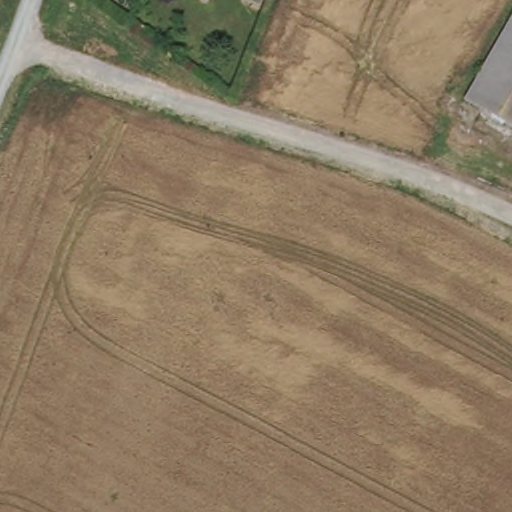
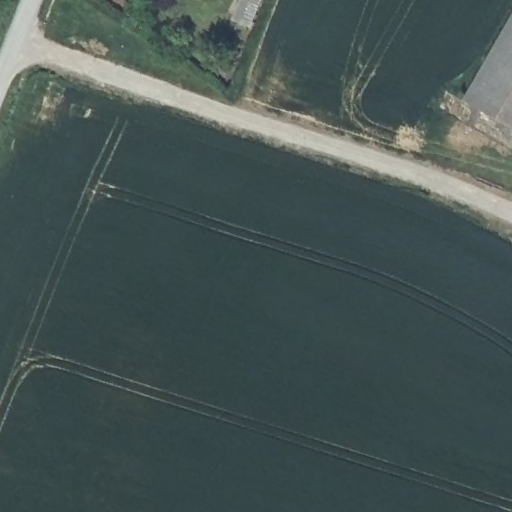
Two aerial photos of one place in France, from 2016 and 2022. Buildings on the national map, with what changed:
unchanged [(466,99),(512,21),(512,126),(466,99)]

